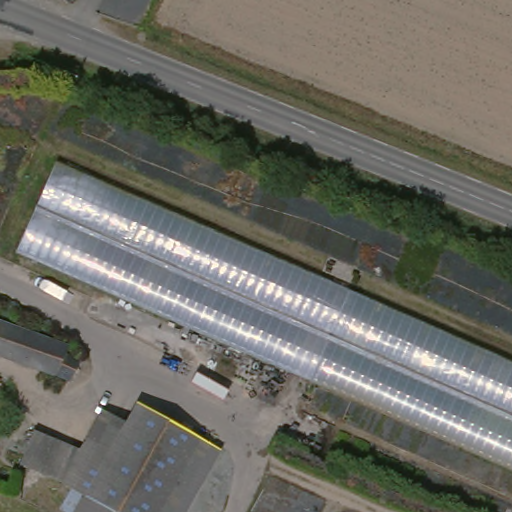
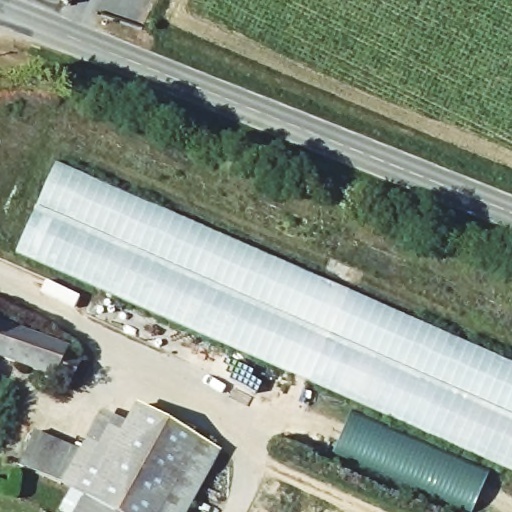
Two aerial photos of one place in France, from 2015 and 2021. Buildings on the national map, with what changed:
unchanged [(65,7),(56,0),(72,0),(65,7)]
unchanged [(58,159),(512,359),(512,468),(15,251),(58,159)]
unchanged [(67,341),(66,346),(85,351),(79,372),(2,350),(1,354),(0,354),(0,322),(63,340),(67,341)]
unchanged [(3,376),(0,393),(0,376),(3,376)]
unchanged [(126,402),(215,447),(185,512),(100,512),(91,507),(93,503),(77,494),(73,492),(85,457),(71,453),(91,414),(114,425),(126,402)]
new [(471,512),(470,512),(332,454),(351,411),(489,470),(471,512)]
unchanged [(25,440),(71,453),(85,457),(73,492),(16,474),(25,440)]
new [(77,494),(93,503),(91,507),(100,512),(66,512),(59,510),(69,491),(73,492),(77,494)]

